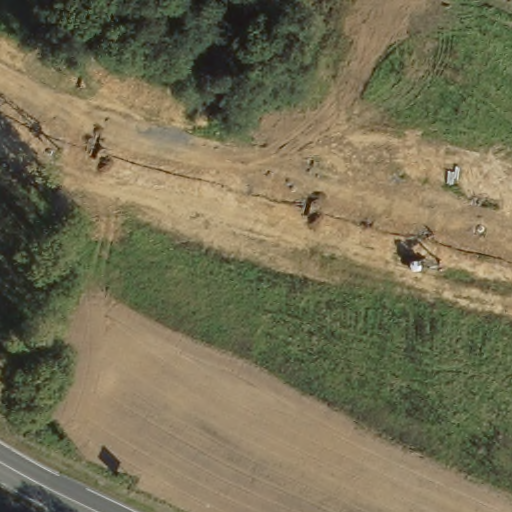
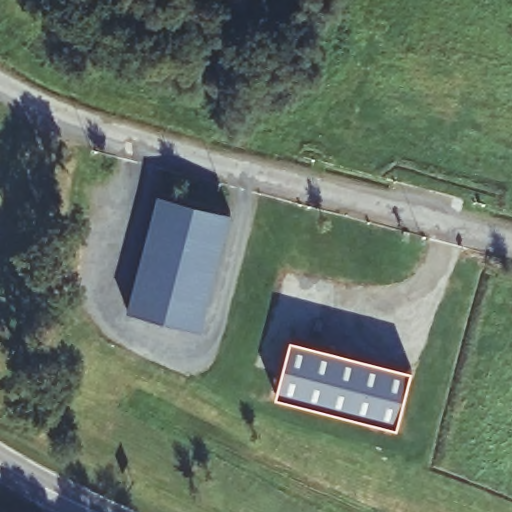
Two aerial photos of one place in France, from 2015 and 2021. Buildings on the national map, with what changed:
new [(201,330),(127,309),(157,193),(230,212),(201,330)]
new [(398,425),(275,393),(288,337),(410,367),(398,425)]

